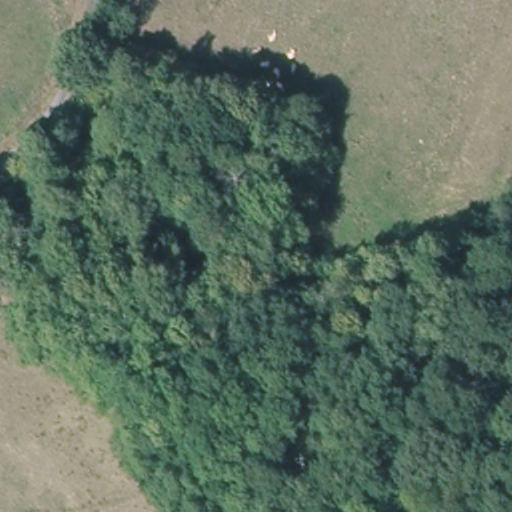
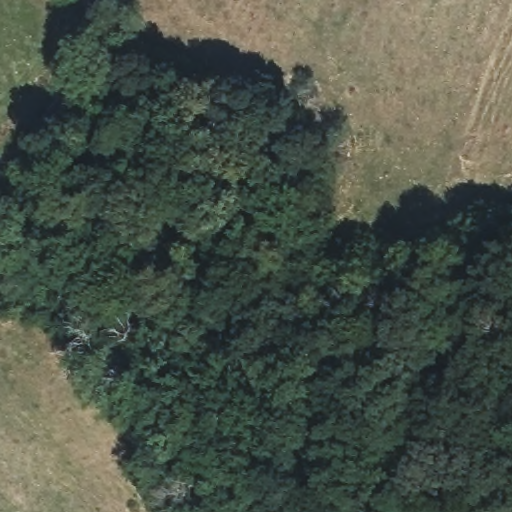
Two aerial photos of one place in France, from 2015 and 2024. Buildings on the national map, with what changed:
[]

